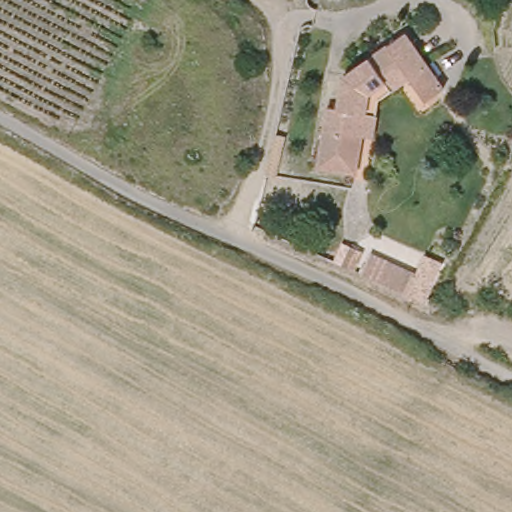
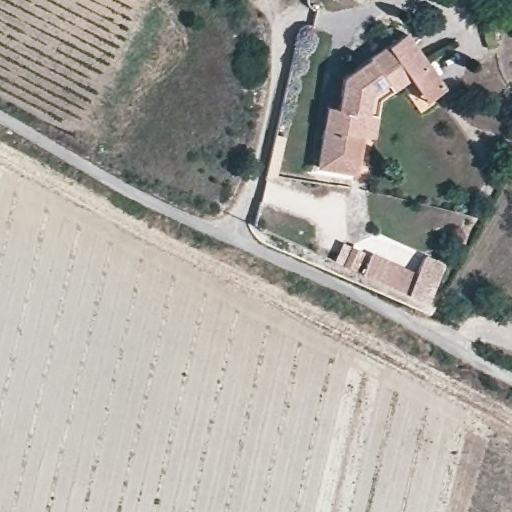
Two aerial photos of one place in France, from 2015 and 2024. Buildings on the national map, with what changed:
unchanged [(438,74),(421,88),(400,70),(376,93),(358,174),(319,166),(325,128),(338,128),(345,75),(406,33),(438,74)]
unchanged [(412,270),(421,255),(439,261),(432,280),(423,304),(370,280),(382,257),(412,270)]

